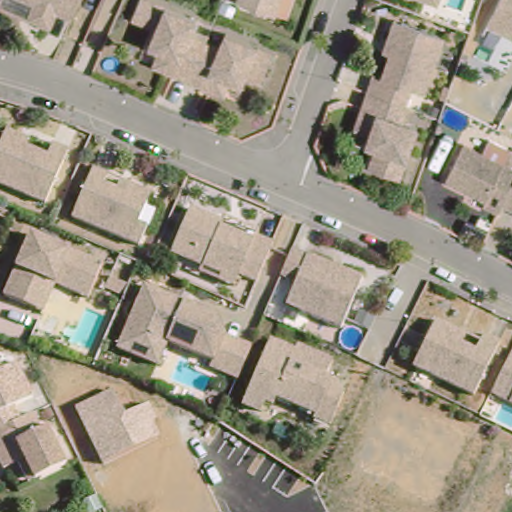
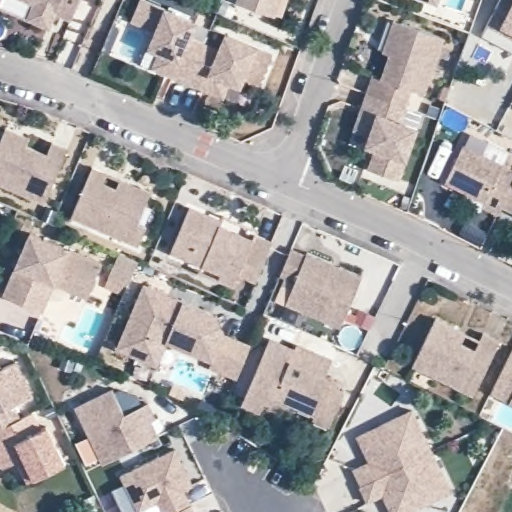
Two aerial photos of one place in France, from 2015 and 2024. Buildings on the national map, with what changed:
unchanged [(81,0),(72,20),(56,13),(50,29),(28,20),(0,8),(0,4),(2,0),(81,0)]
unchanged [(153,69),(160,54),(149,49),(156,32),(132,22),(141,0),(196,24),(190,39),(204,45),(188,84),(153,69)]
unchanged [(249,0),(273,0),(270,7),(249,0)]
unchanged [(512,0),(512,44),(487,31),(503,0),(512,0)]
unchanged [(383,79),(391,56),(384,54),(395,22),(403,25),(445,40),(425,95),(412,91),(405,108),(368,94),(375,76),(383,79)]
unchanged [(204,45),(219,51),(226,37),(273,57),(263,78),(247,71),(240,88),(229,84),(223,99),(188,84),(204,45)]
unchanged [(405,108),(408,109),(403,124),(418,129),(399,180),(369,170),(376,150),(367,147),(370,136),(355,130),(368,94),(405,108)]
unchanged [(68,140),(45,194),(0,175),(0,133),(3,127),(6,119),(30,129),(26,137),(48,146),(53,134),(68,140)]
unchanged [(512,166),(512,178),(500,202),(497,208),(482,200),(484,196),(445,177),(462,141),(512,166)]
unchanged [(103,165),(99,174),(119,183),(123,174),(146,183),(133,214),(142,218),(134,236),(67,208),(88,158),(103,165)]
unchanged [(500,202),(512,178),(512,208),(500,202)]
unchanged [(257,282),(239,275),(234,286),(201,273),(204,267),(171,253),(190,208),(223,222),(225,217),(257,231),(255,236),(273,244),(257,282)]
unchanged [(50,275),(38,303),(0,288),(0,283),(25,224),(97,255),(83,289),(50,275)]
unchanged [(302,250),(303,248),(359,272),(337,323),(281,299),(291,277),(276,271),(288,244),(302,250)]
new [(121,255),(138,262),(123,297),(106,290),(121,255)]
unchanged [(142,359),(118,349),(145,286),(217,316),(225,335),(214,361),(168,342),(158,366),(142,359)]
unchanged [(410,372),(416,358),(413,357),(435,310),(460,322),(455,331),(475,341),(484,325),(500,332),(473,386),(434,367),(427,381),(410,372)]
unchanged [(265,330),(290,340),(292,336),(328,351),(321,367),(334,373),(331,379),(340,383),(326,416),(309,409),(311,405),(271,388),(268,395),(261,392),(256,402),(238,394),(265,330)]
unchanged [(251,346),(237,379),(211,367),(214,361),(225,335),(251,346)]
unchanged [(491,384),(512,342),(512,395),(491,384)]
unchanged [(18,453),(4,460),(0,453),(0,362),(16,354),(32,387),(13,397),(20,410),(32,404),(41,421),(46,418),(65,456),(28,475),(18,453)]
unchanged [(115,392),(120,389),(138,395),(143,405),(148,403),(156,418),(160,416),(164,425),(158,431),(160,435),(104,465),(75,407),(112,386),(115,392)]
new [(380,494),(365,501),(353,471),(369,464),(356,438),(412,409),(450,492),(413,512),(388,512),(380,494)]
new [(126,473),(180,447),(197,483),(188,487),(195,502),(175,512),(128,512),(116,487),(130,481),(126,473)]
unchanged [(88,510),(88,512),(83,512),(88,510)]
new [(192,512),(188,512),(192,510),(192,512)]

